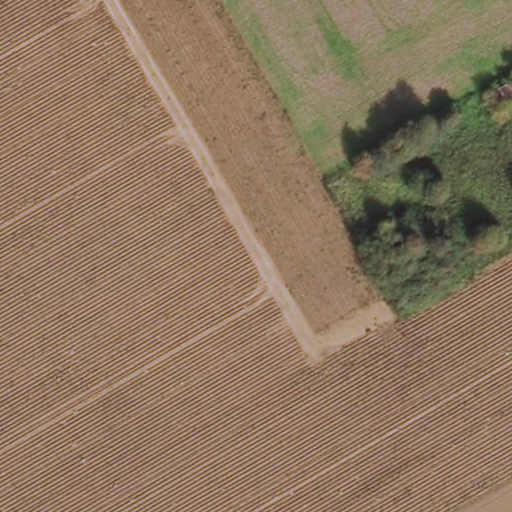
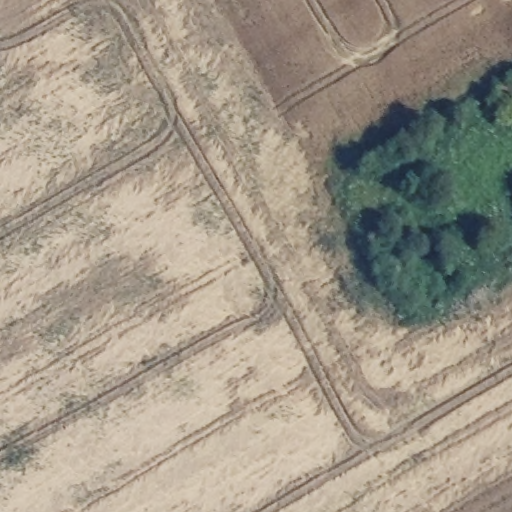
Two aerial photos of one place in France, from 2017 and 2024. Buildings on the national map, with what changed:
unchanged [(512,85),(512,106),(498,112),(490,95),(512,85)]

